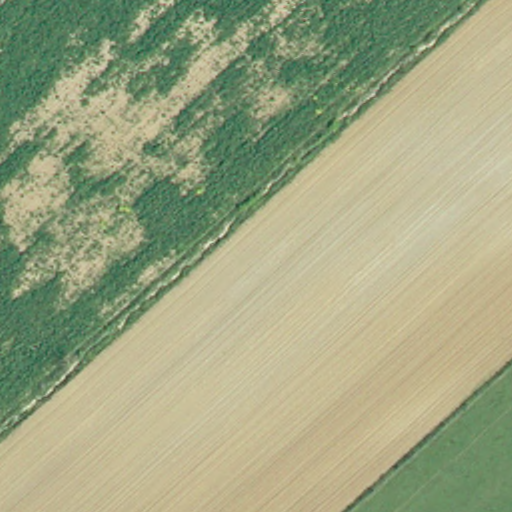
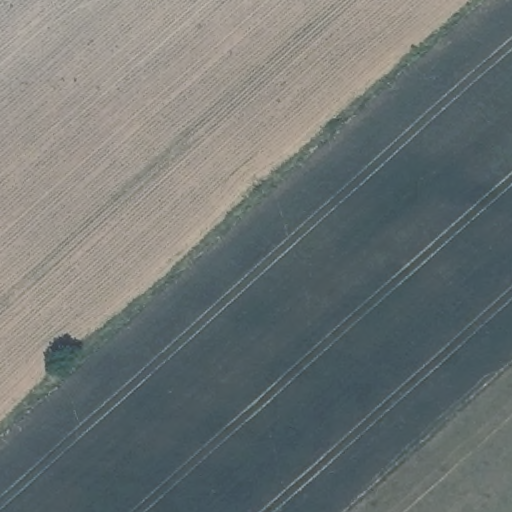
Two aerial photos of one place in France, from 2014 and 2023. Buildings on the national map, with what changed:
[]

